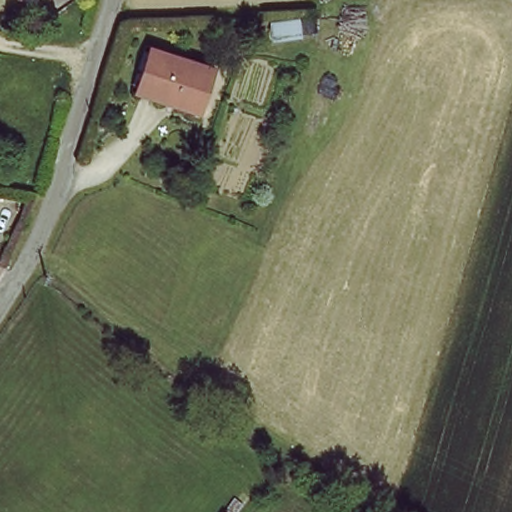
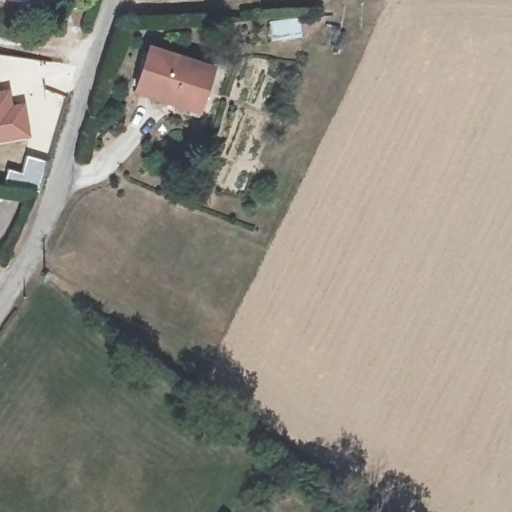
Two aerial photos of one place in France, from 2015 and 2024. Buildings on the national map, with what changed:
unchanged [(156,45),(215,71),(200,114),(140,88),(156,45)]
new [(0,92),(8,90),(10,106),(21,105),(30,136),(0,142),(0,92)]

